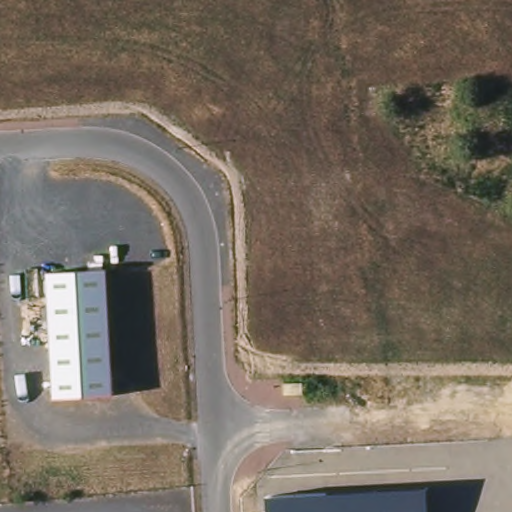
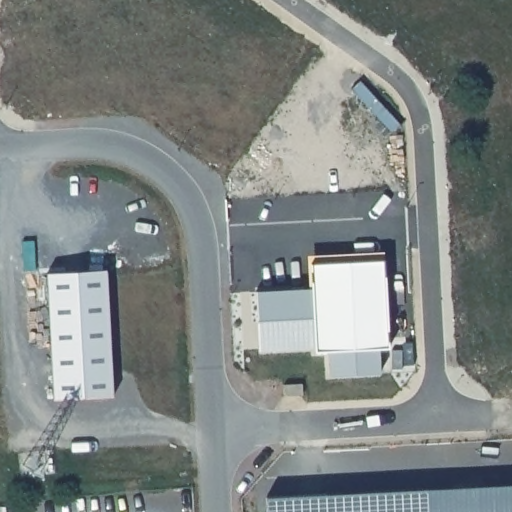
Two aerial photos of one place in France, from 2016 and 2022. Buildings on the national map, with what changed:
new [(389,347),(381,348),(380,373),(330,374),(329,350),(315,351),(315,347),(258,349),(255,292),(312,287),(310,262),(384,259),(393,306),(389,347)]
unchanged [(46,272),(106,270),(114,398),(55,401),(46,272)]
unchanged [(430,512),(267,512),(267,495),(429,488),(430,512)]

